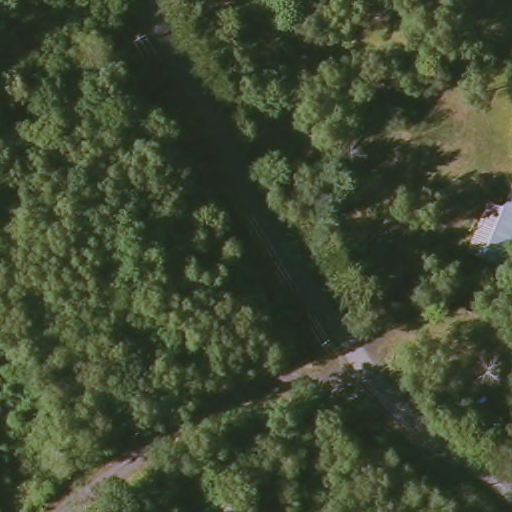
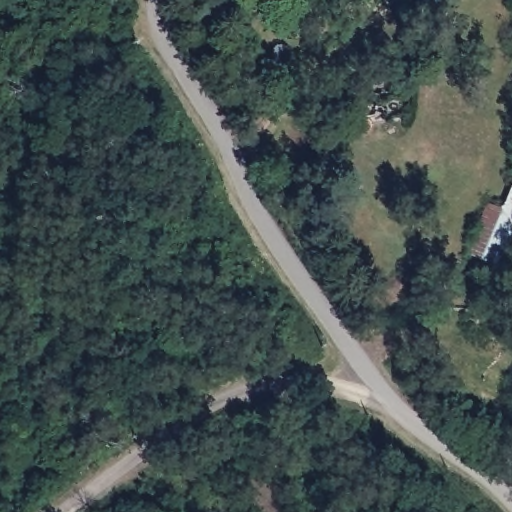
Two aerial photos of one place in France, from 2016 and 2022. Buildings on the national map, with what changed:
unchanged [(510,188),(512,189),(512,264),(497,301),(480,294),(496,257),(483,251),(481,257),(467,252),(488,202),(502,207),(510,188)]

